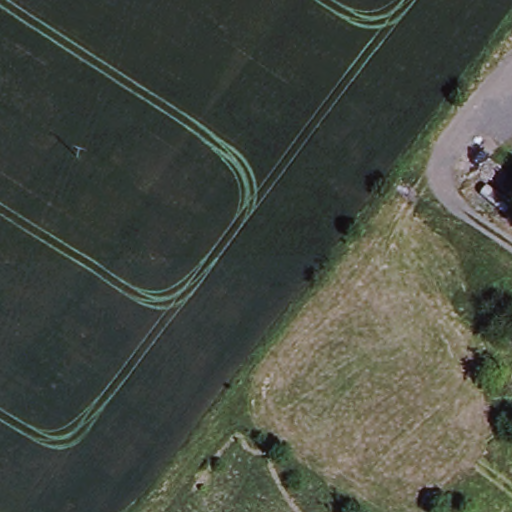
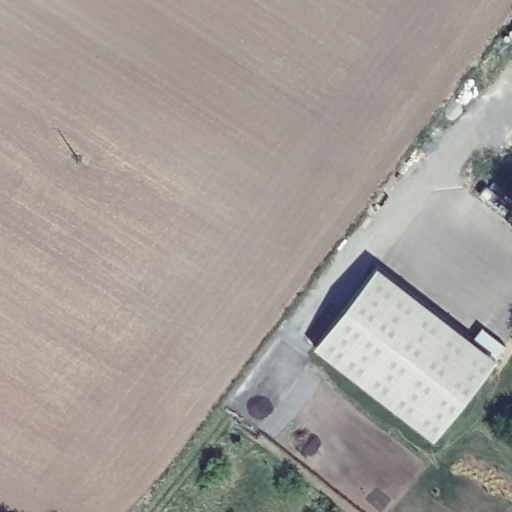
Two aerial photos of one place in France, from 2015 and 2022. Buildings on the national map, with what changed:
new [(472,339),(482,328),(505,346),(497,358),(434,439),(315,347),(377,266),(472,339)]

